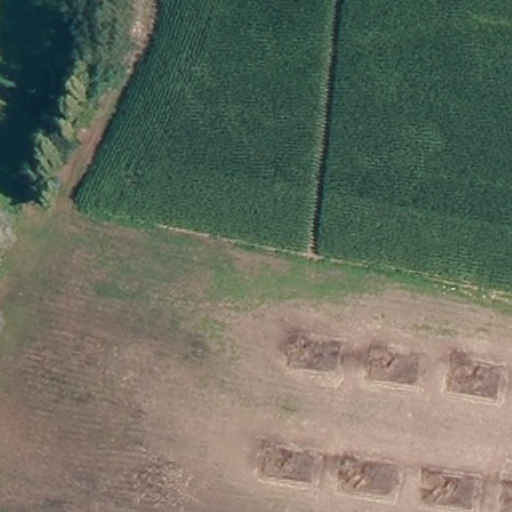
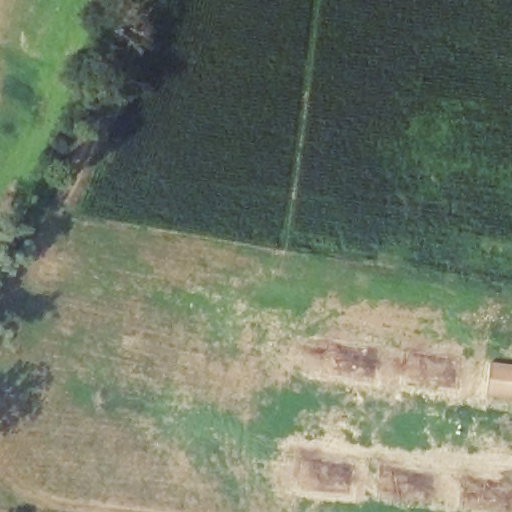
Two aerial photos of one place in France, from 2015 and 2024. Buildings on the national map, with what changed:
unchanged [(326,380),(277,375),(281,342),(329,349),(326,380)]
unchanged [(405,390),(357,386),(360,353),(409,357),(405,390)]
unchanged [(487,393),(437,391),(440,359),(488,363),(487,393)]
new [(493,367),(512,369),(512,400),(491,399),(493,367)]
unchanged [(294,493),(245,488),(249,456),(297,462),(294,493)]
unchanged [(375,502),(324,499),(327,466),(377,470),(375,502)]
unchanged [(452,508),(402,504),(406,471),(455,476),(452,508)]
unchanged [(512,482),(512,512),(481,512),(484,480),(512,482)]

